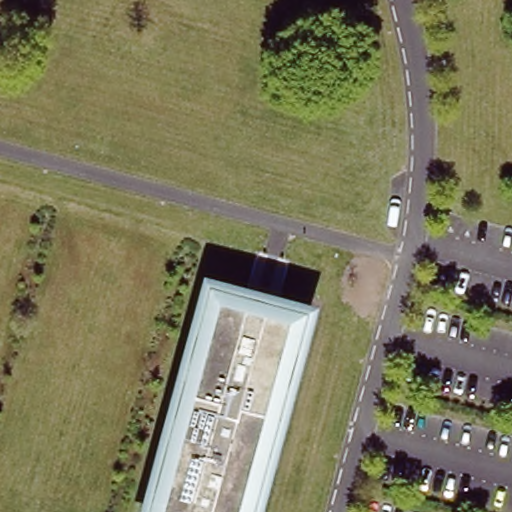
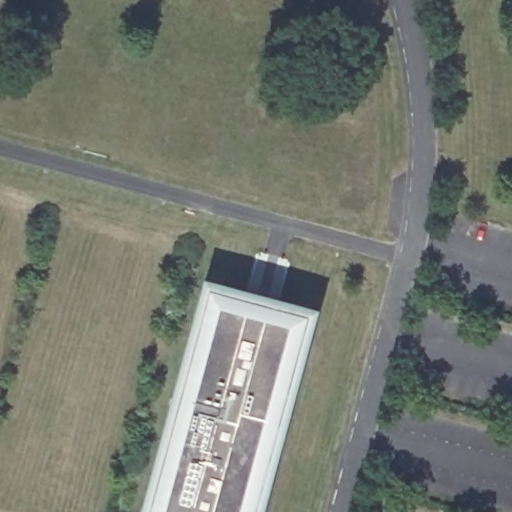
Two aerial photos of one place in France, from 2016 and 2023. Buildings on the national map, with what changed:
unchanged [(268,512),(143,512),(208,282),(323,316),(268,512)]

